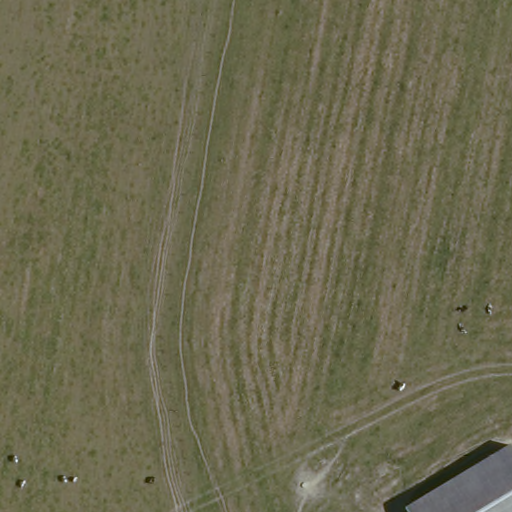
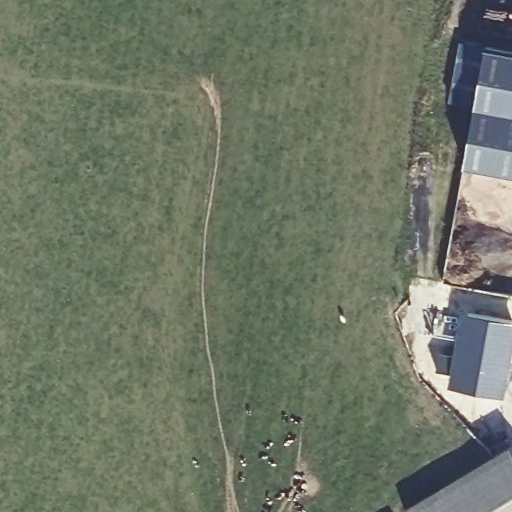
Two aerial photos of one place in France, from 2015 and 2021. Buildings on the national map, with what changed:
new [(460,41),(485,45),(474,105),(449,101),(460,41)]
new [(474,105),(485,45),(512,50),(512,174),(463,165),(474,105)]
new [(437,355),(458,359),(467,313),(512,321),(498,397),(453,389),(456,376),(435,371),(437,355)]
unchanged [(418,512),(412,500),(512,450),(512,512),(418,512)]

